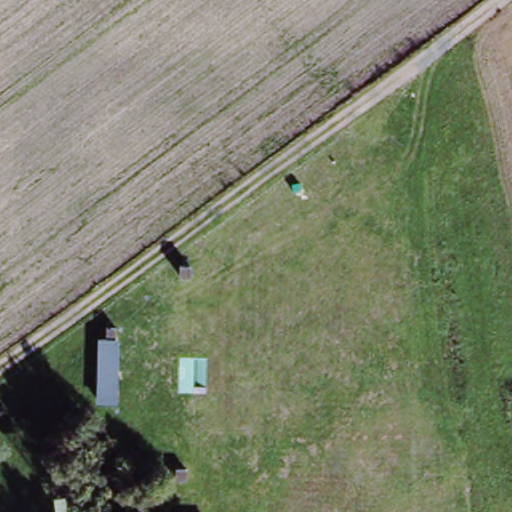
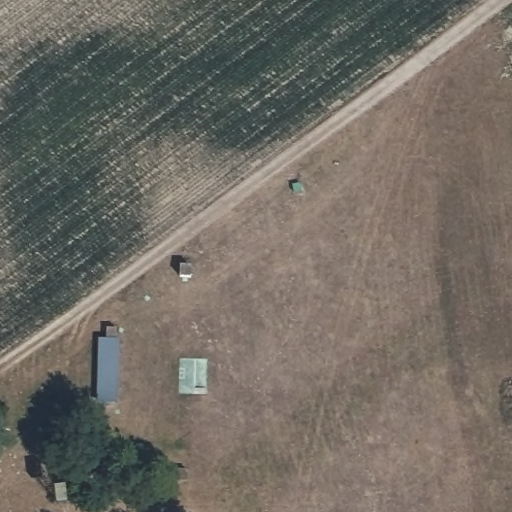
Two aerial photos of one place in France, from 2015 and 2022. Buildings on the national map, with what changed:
[]

